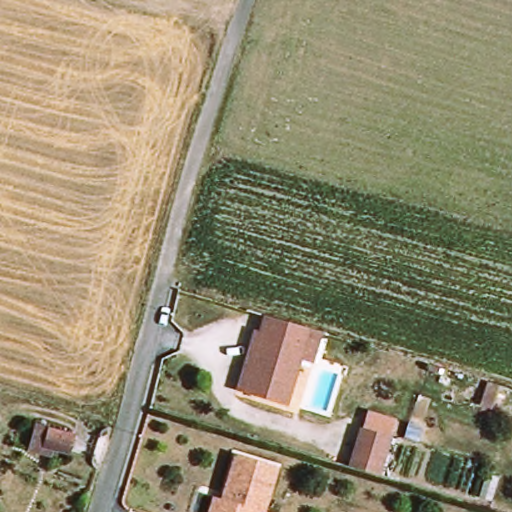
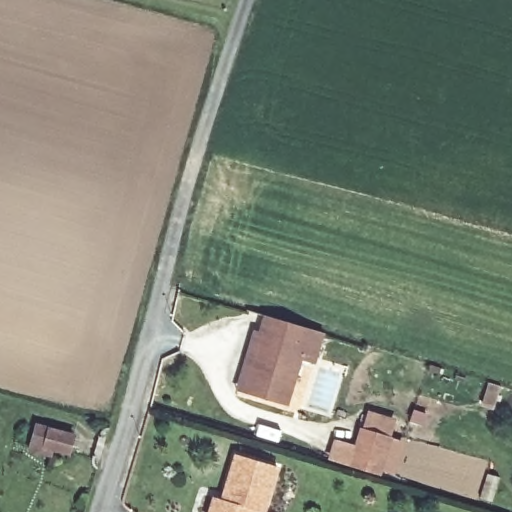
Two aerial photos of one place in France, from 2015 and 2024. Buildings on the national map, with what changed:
unchanged [(251,330),(261,333),(266,316),(309,330),(325,335),(319,354),(303,349),(285,406),(244,395),(232,393),(251,330)]
unchanged [(28,433),(30,427),(35,417),(35,415),(37,411),(54,418),(73,426),(72,429),(66,442),(51,435),(48,442),(28,433)]
unchanged [(380,478),(351,469),(362,428),(393,438),(380,478)]
unchanged [(211,497),(226,455),(269,467),(253,512),(198,512),(203,497),(211,497)]

